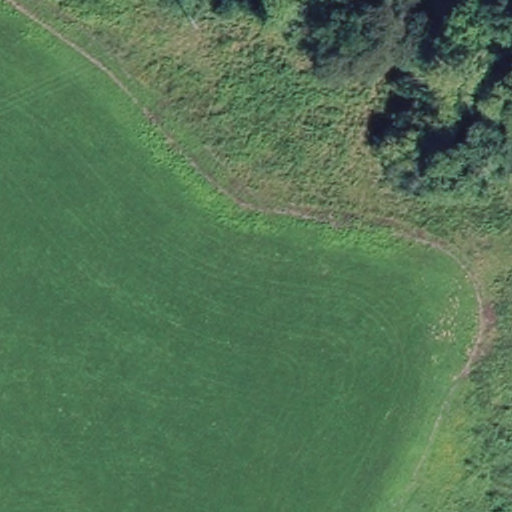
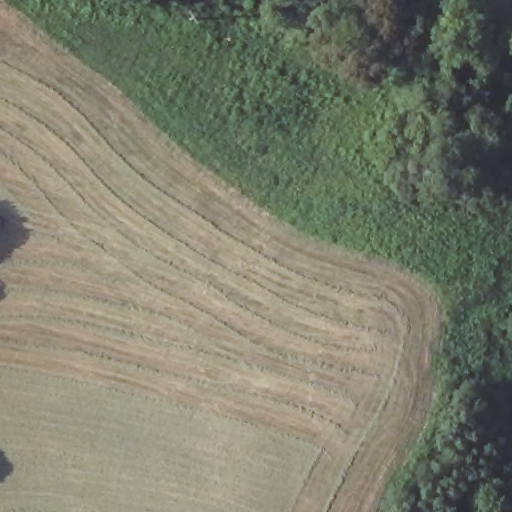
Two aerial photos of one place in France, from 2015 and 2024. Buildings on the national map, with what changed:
unchanged [(418,171),(387,157),(424,79),(457,91),(418,171)]

